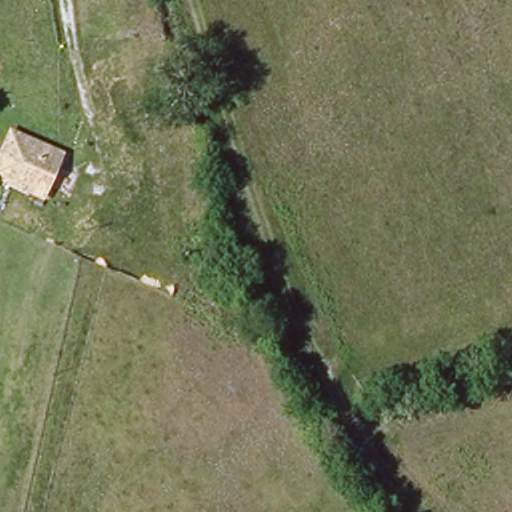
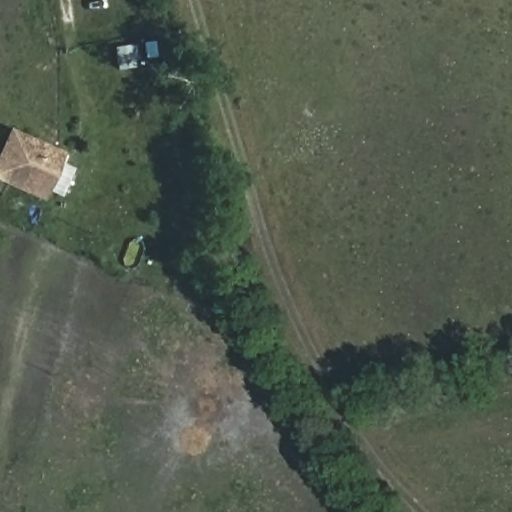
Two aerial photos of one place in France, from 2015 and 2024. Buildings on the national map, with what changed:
unchanged [(62,155),(41,200),(0,178),(0,152),(15,126),(62,155)]

